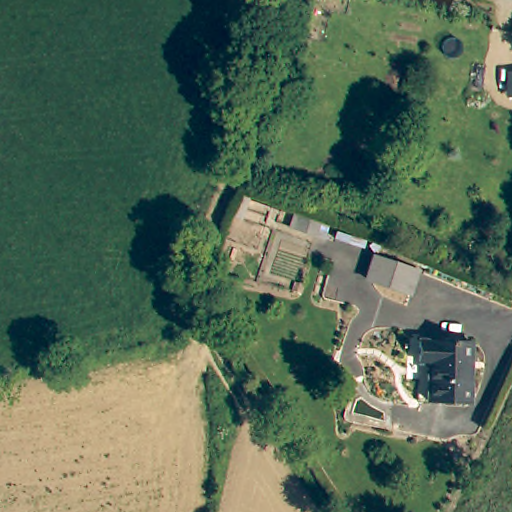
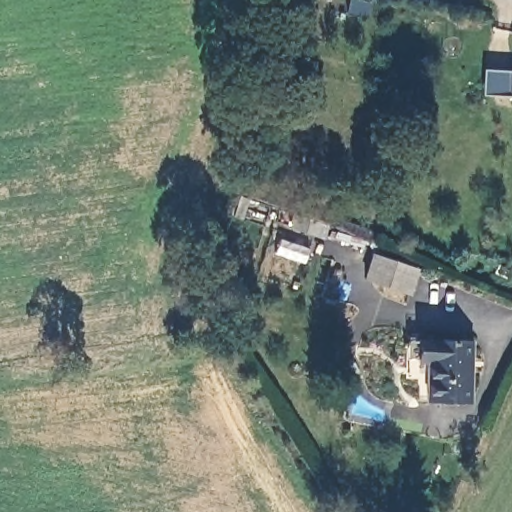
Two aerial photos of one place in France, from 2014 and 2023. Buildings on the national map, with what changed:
new [(512,71),(512,97),(482,95),(484,69),(512,71)]
unchanged [(418,273),(406,295),(371,277),(382,255),(418,273)]
unchanged [(420,391),(426,352),(419,350),(423,331),(474,342),(465,401),(420,391)]

